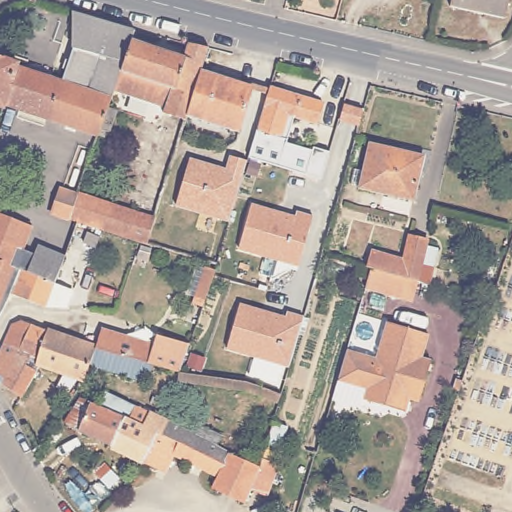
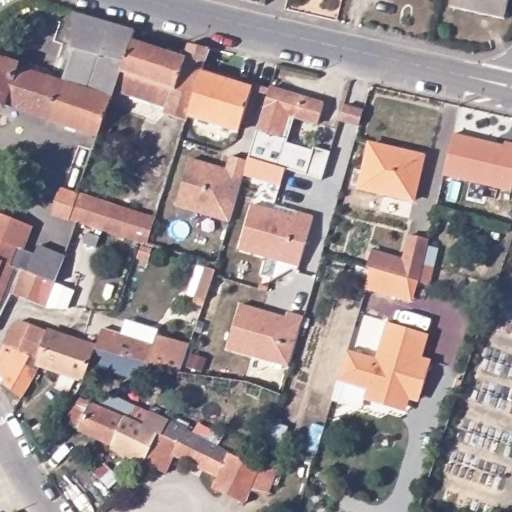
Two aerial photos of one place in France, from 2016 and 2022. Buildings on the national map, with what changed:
unchanged [(447,8),(450,0),(507,0),(502,22),(447,8)]
unchanged [(95,131),(0,98),(0,56),(13,60),(12,63),(57,79),(68,47),(71,14),(135,27),(131,37),(119,68),(110,91),(95,131)]
unchanged [(182,116),(160,109),(167,85),(119,68),(131,37),(182,54),(187,39),(207,43),(199,67),(184,111),(182,116)]
unchanged [(184,111),(199,67),(251,82),(237,126),(184,111)]
unchanged [(323,104),(317,123),(293,117),(286,143),(312,151),(312,147),(328,152),(320,179),(247,158),(249,151),(268,89),(323,104)]
unchanged [(362,120),(343,114),(347,100),(367,105),(362,120)]
unchanged [(168,129),(171,119),(180,122),(177,132),(168,129)]
new [(504,146),(505,142),(512,144),(512,189),(512,192),(443,175),(453,134),(504,146)]
unchanged [(357,187),(367,144),(422,156),(412,200),(357,187)]
unchanged [(230,211),(177,196),(191,150),(228,161),(232,146),(249,151),(247,158),(230,211)]
unchanged [(142,243),(97,228),(72,219),(56,213),(64,189),(80,195),(84,184),(92,187),(89,196),(156,221),(149,246),(142,244),(142,243)]
unchanged [(298,222),(300,216),(316,220),(301,270),(241,253),(254,209),(298,222)]
unchanged [(69,304),(48,302),(14,290),(0,316),(0,212),(34,224),(25,248),(37,252),(40,243),(67,253),(57,278),(76,285),(69,304)]
unchanged [(86,243),(90,232),(102,236),(97,247),(86,243)]
unchanged [(357,266),(362,249),(395,259),(402,235),(421,241),(408,281),(357,266)]
unchanged [(135,263),(139,252),(154,257),(150,268),(135,263)]
unchanged [(206,296),(195,292),(206,262),(217,266),(215,270),(210,286),(206,296)]
unchanged [(287,322),(288,316),(304,321),(289,369),(227,351),(240,308),(287,322)]
unchanged [(25,350),(20,360),(31,366),(17,393),(0,382),(0,378),(2,375),(0,373),(0,347),(12,321),(21,317),(46,328),(36,356),(25,350)]
unchanged [(371,400),(368,400),(365,390),(336,381),(346,348),(374,356),(385,320),(427,333),(418,356),(428,359),(417,392),(405,398),(402,409),(371,400)]
unchanged [(102,328),(154,344),(157,335),(190,345),(180,373),(124,357),(119,371),(89,362),(83,380),(34,360),(36,356),(46,328),(81,342),(94,348),(96,349),(102,328)]
unchanged [(153,437),(141,461),(128,456),(129,454),(63,421),(69,407),(76,394),(126,417),(132,404),(165,420),(157,438),(153,437)]
unchanged [(264,494),(248,487),(246,493),(242,501),(209,484),(215,472),(172,452),(165,469),(141,461),(153,437),(157,438),(165,420),(232,451),(258,464),(261,458),(262,454),(279,463),(264,494)]

